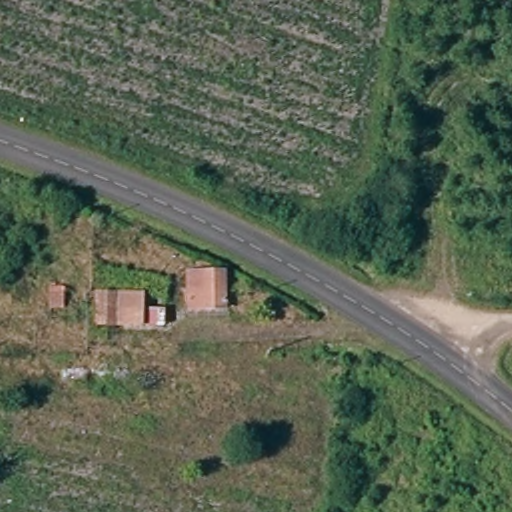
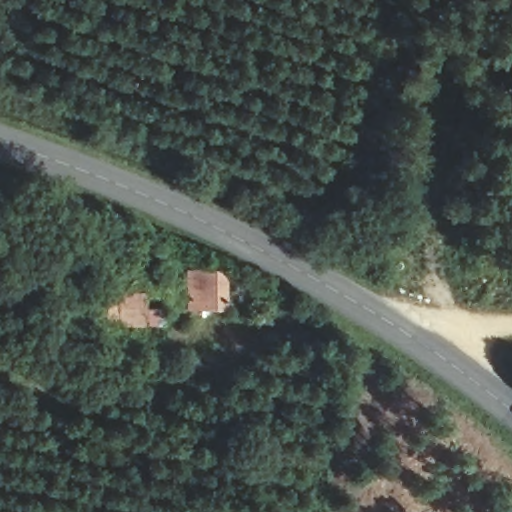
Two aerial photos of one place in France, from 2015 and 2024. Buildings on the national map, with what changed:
unchanged [(199,307),(185,307),(186,271),(228,268),(230,305),(199,307)]
unchanged [(155,288),(156,327),(86,329),(88,287),(155,288)]

